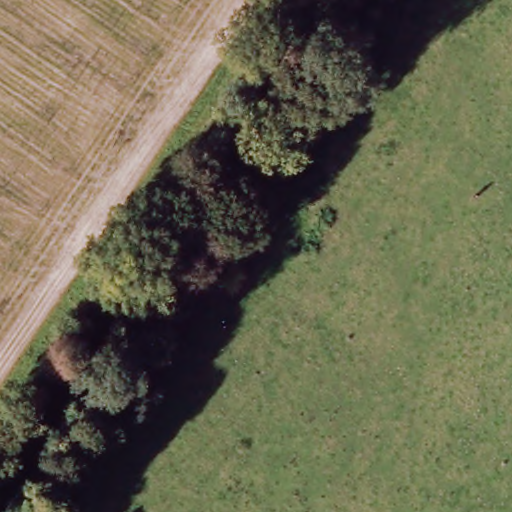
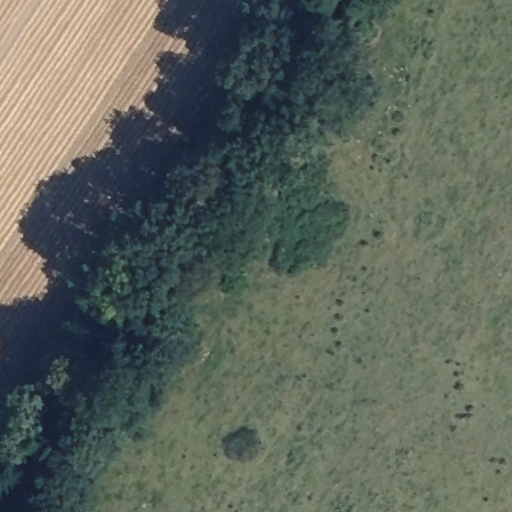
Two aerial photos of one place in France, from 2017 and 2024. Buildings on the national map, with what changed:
unchanged [(239,256),(208,300),(192,288),(221,244),(239,256)]

